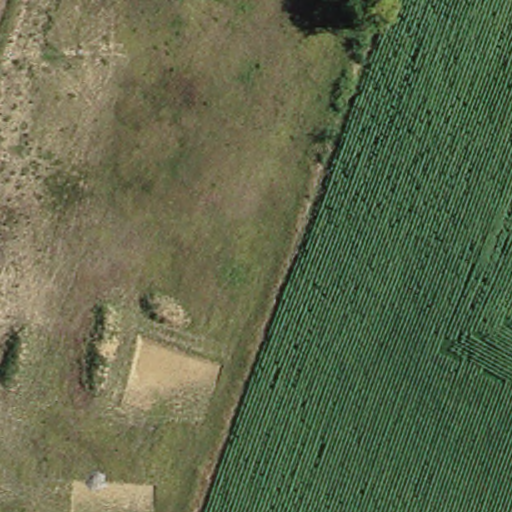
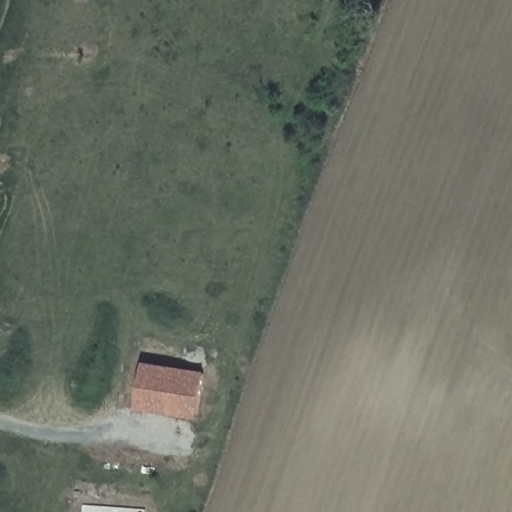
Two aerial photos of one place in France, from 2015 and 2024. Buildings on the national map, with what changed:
new [(206,372),(198,419),(136,410),(143,362),(206,372)]

